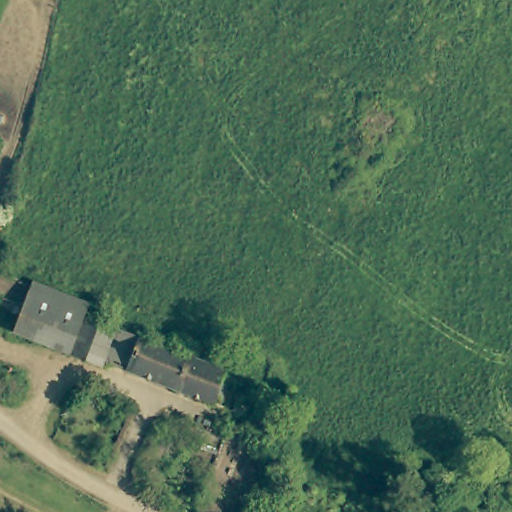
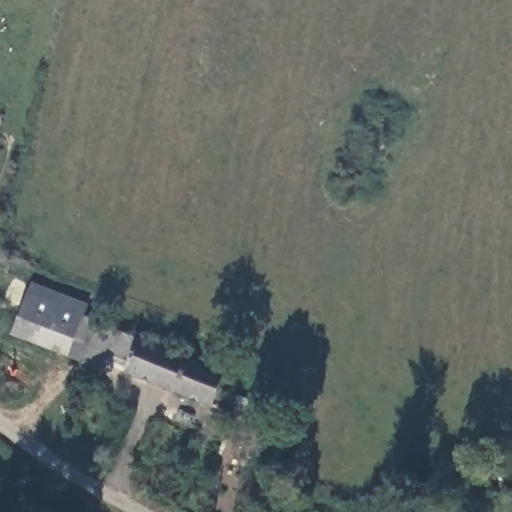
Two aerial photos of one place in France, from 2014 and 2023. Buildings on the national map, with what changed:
unchanged [(78,338),(22,317),(34,283),(91,305),(86,318),(78,338)]
unchanged [(70,356),(78,338),(86,318),(119,332),(103,370),(70,356)]
unchanged [(223,414),(123,371),(138,340),(222,374),(220,377),(237,385),(223,414)]

